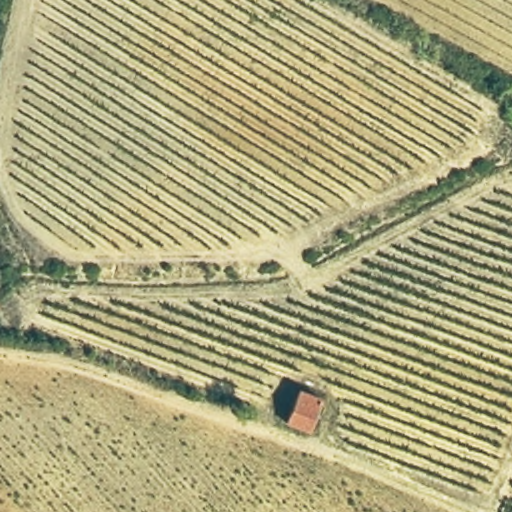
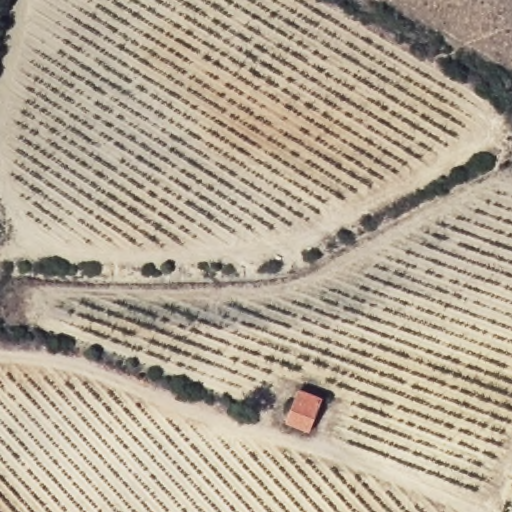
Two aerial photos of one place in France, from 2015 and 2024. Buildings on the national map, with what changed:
unchanged [(295,383),(320,391),(307,428),(283,418),(295,383)]

